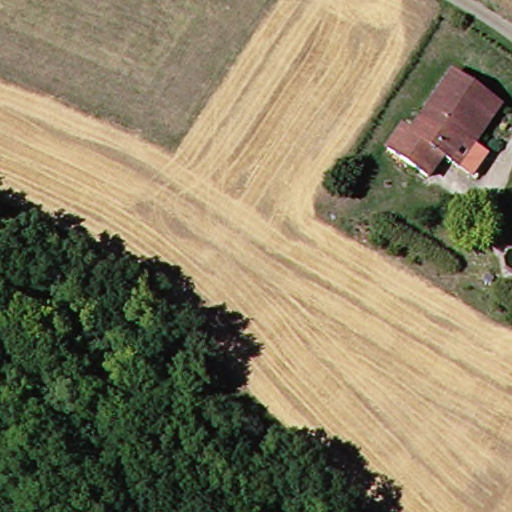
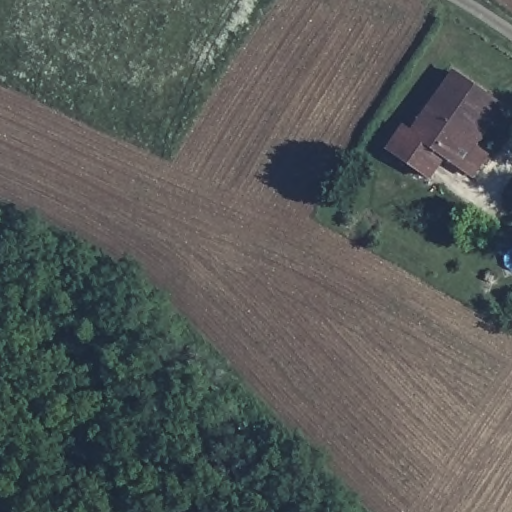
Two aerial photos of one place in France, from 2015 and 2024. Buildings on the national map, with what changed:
unchanged [(452,170),(443,162),(434,157),(418,174),(384,149),(396,130),(400,134),(452,72),(485,101),(495,110),(452,170)]

